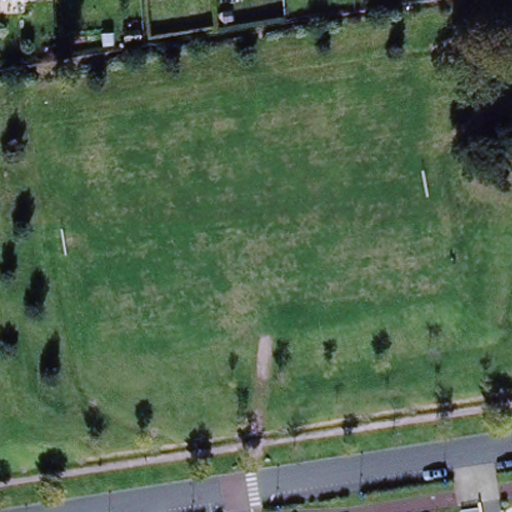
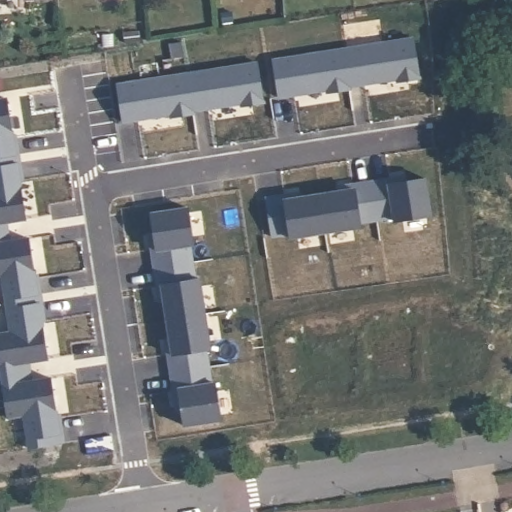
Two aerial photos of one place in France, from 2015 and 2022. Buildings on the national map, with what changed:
unchanged [(32,2),(32,0),(55,0),(32,2)]
new [(417,40),(422,81),(399,85),(397,79),(352,85),(353,91),(329,95),(328,90),(279,97),(273,62),(417,40)]
new [(259,64),(266,105),(243,109),(243,105),(194,112),(195,117),(173,120),(173,116),(124,122),(118,87),(259,64)]
new [(8,100),(27,220),(10,224),(12,243),(31,240),(50,360),(30,365),(34,385),(53,381),(65,445),(30,452),(26,418),(8,420),(0,371),(0,337),(12,335),(3,277),(0,278),(0,102),(8,100)]
new [(286,197),(286,202),(356,191),(355,187),(390,180),(392,185),(427,180),(435,217),(397,222),(397,218),(362,224),(364,228),(290,240),(290,236),(273,239),(267,201),(286,197)]
new [(195,246),(190,247),(195,281),(200,280),(212,351),(207,352),(212,386),(217,385),(223,421),(185,428),(180,392),(175,392),(169,357),(175,356),(162,287),(158,289),(153,253),(158,251),(152,216),(190,210),(195,246)]

